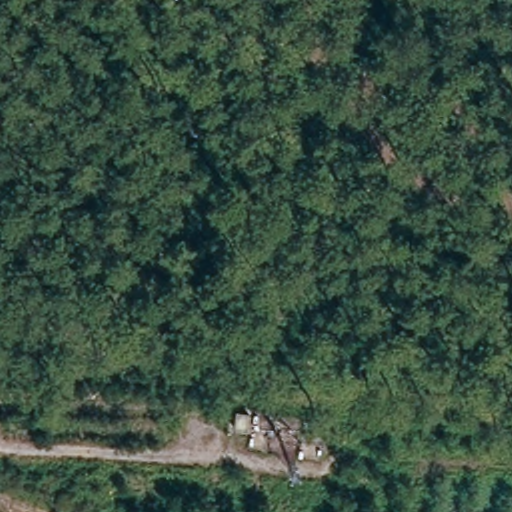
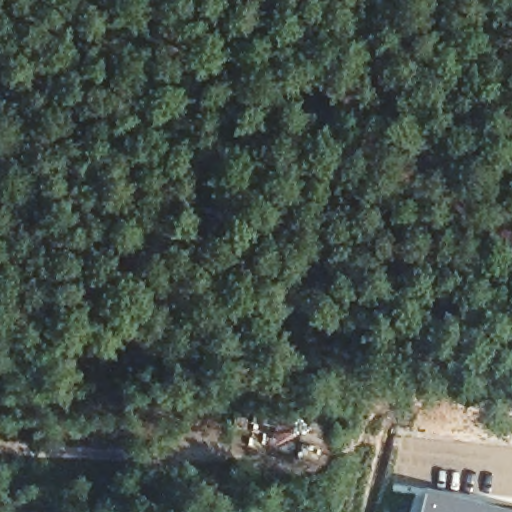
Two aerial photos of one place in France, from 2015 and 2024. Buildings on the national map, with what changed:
new [(501,503),(512,507),(512,512),(416,512),(422,487),(501,503)]

